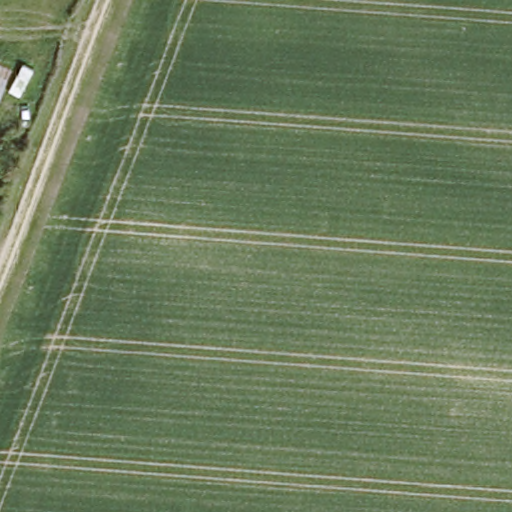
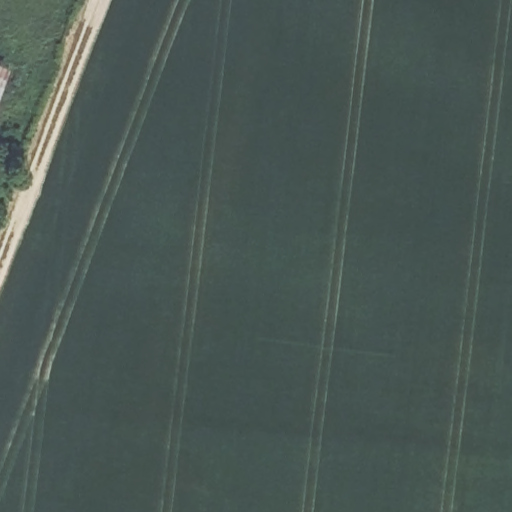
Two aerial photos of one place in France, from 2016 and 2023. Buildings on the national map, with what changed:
unchanged [(0,87),(0,61),(10,65),(0,87)]

